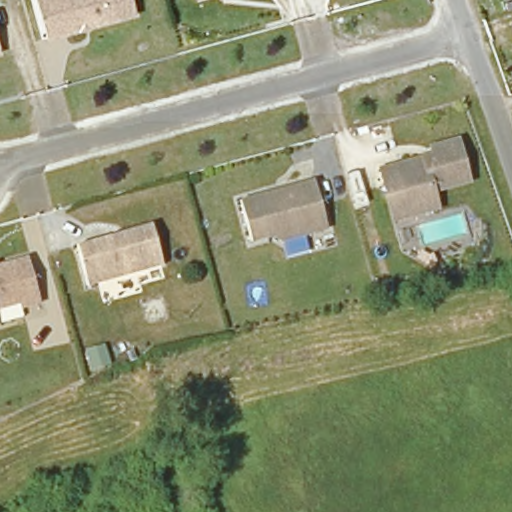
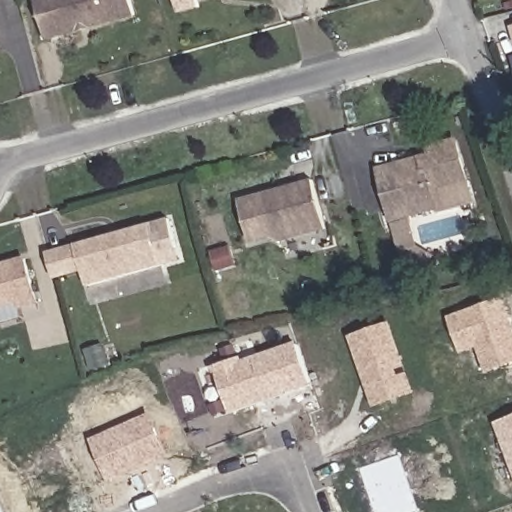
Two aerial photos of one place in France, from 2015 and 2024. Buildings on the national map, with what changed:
unchanged [(138,19),(49,42),(38,0),(132,0),(138,19)]
unchanged [(503,0),(507,0),(503,1),(503,0)]
unchanged [(388,204),(381,177),(434,163),(432,155),(458,149),(468,188),(432,197),(437,215),(409,222),(394,225),(388,204)]
unchanged [(314,185),(327,234),(282,245),(273,240),(251,245),(240,204),(314,185)]
unchanged [(152,228),(163,269),(88,288),(77,247),(152,228)]
unchanged [(34,298),(18,303),(16,297),(0,302),(0,261),(22,255),(34,298)]
new [(505,298),(512,319),(512,364),(486,373),(478,349),(462,355),(448,316),(505,298)]
new [(350,337),(391,322),(415,392),(375,407),(350,337)]
new [(297,343),(312,386),(231,413),(216,371),(297,343)]
new [(153,414),(171,457),(109,482),(91,440),(153,414)]
new [(512,417),(512,463),(497,423),(512,417)]
new [(368,512),(354,468),(395,456),(415,510),(409,512),(368,512)]

